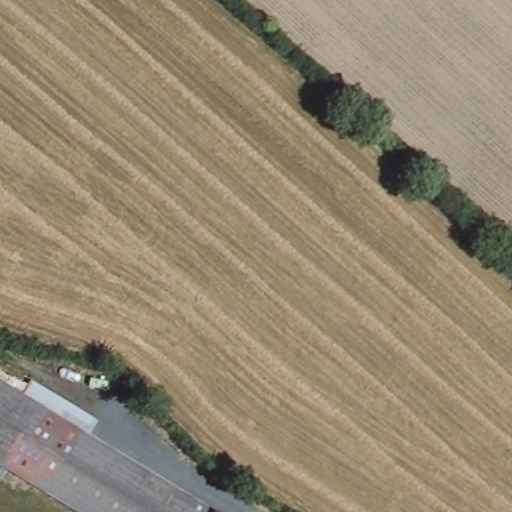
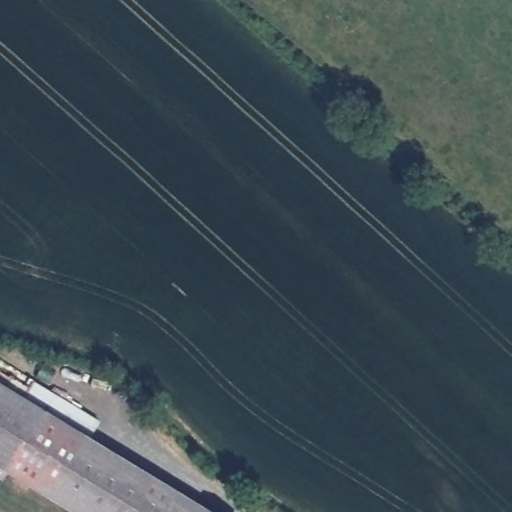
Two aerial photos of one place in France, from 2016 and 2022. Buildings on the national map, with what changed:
unchanged [(0,474),(0,381),(212,512),(62,512),(0,474)]

